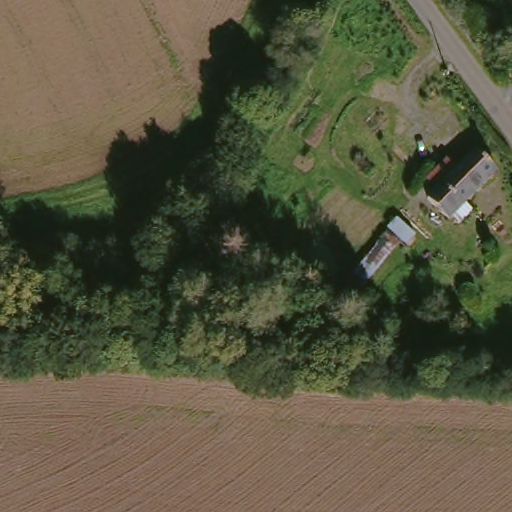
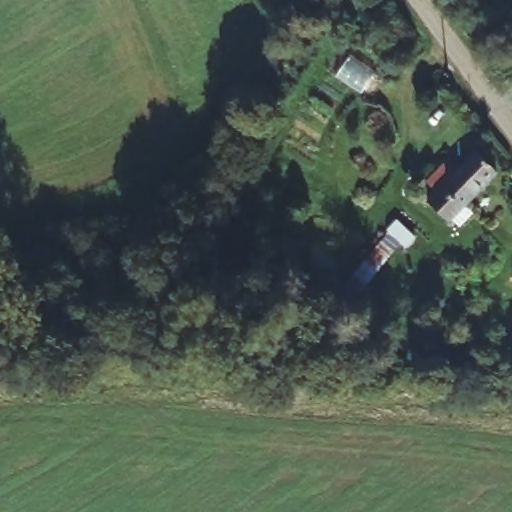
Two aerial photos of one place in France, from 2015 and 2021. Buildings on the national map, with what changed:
unchanged [(463,225),(456,218),(452,222),(431,201),(438,192),(429,182),(430,181),(447,157),(461,170),(480,152),(500,172),(468,205),(475,212),(463,225)]
unchanged [(399,243),(394,249),(344,311),(333,301),(335,299),(388,233),(399,243)]

